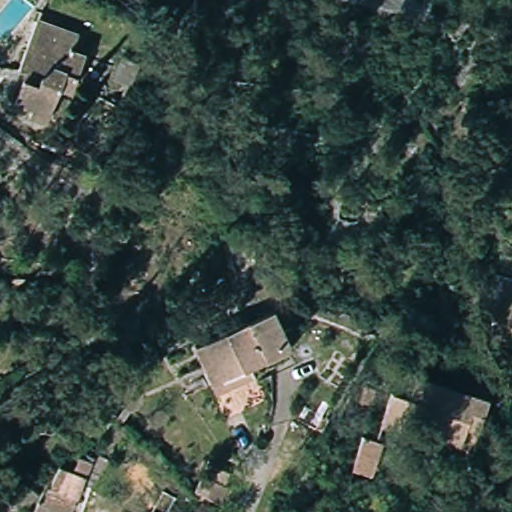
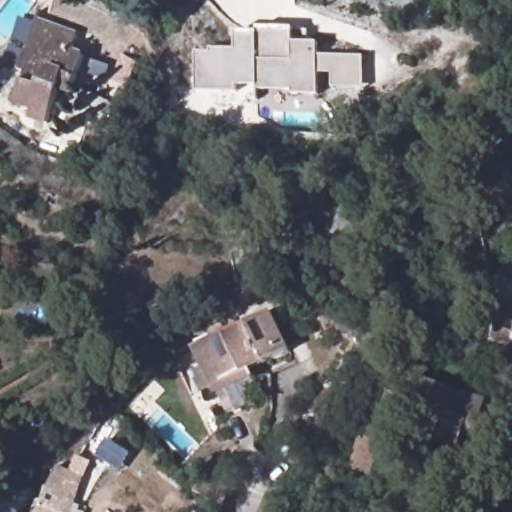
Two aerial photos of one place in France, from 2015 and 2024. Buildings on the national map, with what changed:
unchanged [(19,64),(38,14),(79,28),(74,44),(85,48),(70,89),(60,84),(45,122),(23,114),(27,104),(14,98),(25,68),(19,64)]
new [(211,53),(211,49),(236,50),(235,40),(233,39),(234,32),(257,33),(258,28),(293,29),(309,31),(308,43),(318,44),(317,95),(292,94),(292,90),(256,90),(256,87),(237,86),(236,92),(195,92),(196,53),(211,53)]
unchanged [(512,302),(512,350),(491,341),(495,312),(498,295),(512,302)]
unchanged [(274,309),(291,349),(248,367),(252,376),(214,394),(192,347),(274,309)]
unchanged [(403,437),(380,428),(391,395),(410,402),(417,380),(490,403),(479,434),(467,430),(460,449),(425,438),(423,443),(403,437)]
unchanged [(378,449),(370,481),(352,476),(360,444),(378,449)]
unchanged [(0,512),(0,488),(24,464),(37,475),(25,490),(3,512),(0,512)]
unchanged [(41,469),(59,476),(62,466),(73,471),(60,512),(25,512),(37,475),(41,469)]

